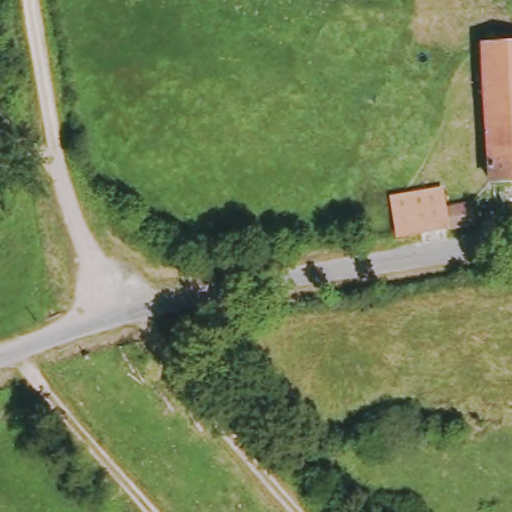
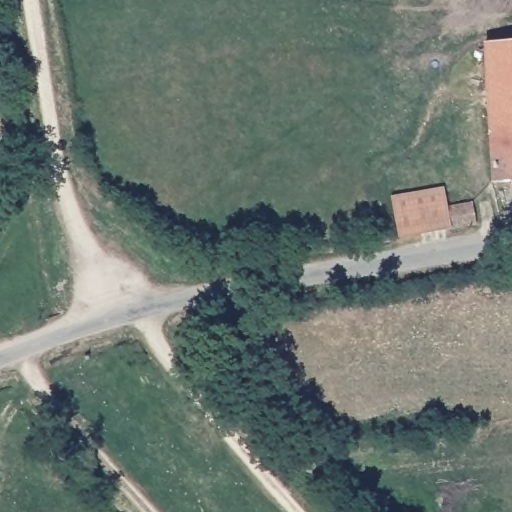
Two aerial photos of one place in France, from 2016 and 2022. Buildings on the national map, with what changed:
unchanged [(490,185),(481,44),(512,43),(512,183),(490,185)]
unchanged [(450,210),(473,205),(478,227),(450,231),(400,240),(391,198),(445,189),(450,210)]

